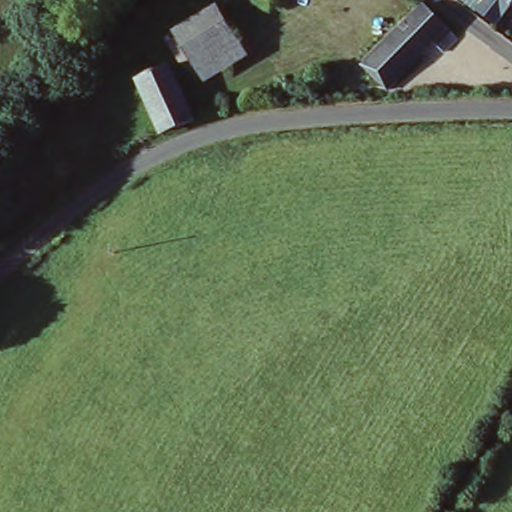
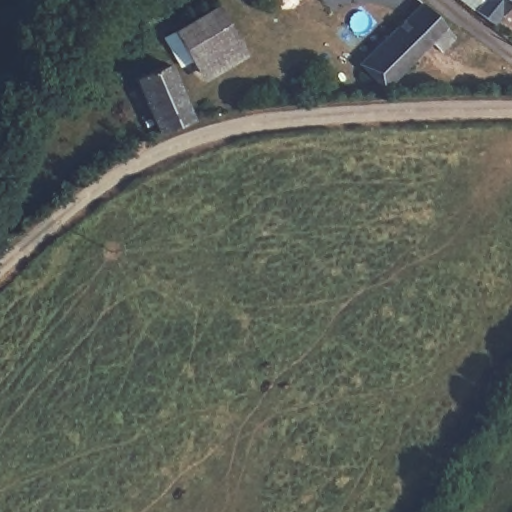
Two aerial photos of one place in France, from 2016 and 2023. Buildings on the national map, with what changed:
unchanged [(498,21),(478,7),(484,0),(512,0),(512,6),(498,21)]
unchanged [(202,76),(192,59),(190,56),(182,60),(164,35),(218,4),(237,34),(246,48),(202,76)]
unchanged [(455,38),(441,51),(436,47),(426,58),(420,53),(384,87),(370,75),(365,80),(360,75),(366,70),(360,64),(421,5),(455,38)]
unchanged [(158,118),(130,84),(163,69),(190,109),(158,118)]

